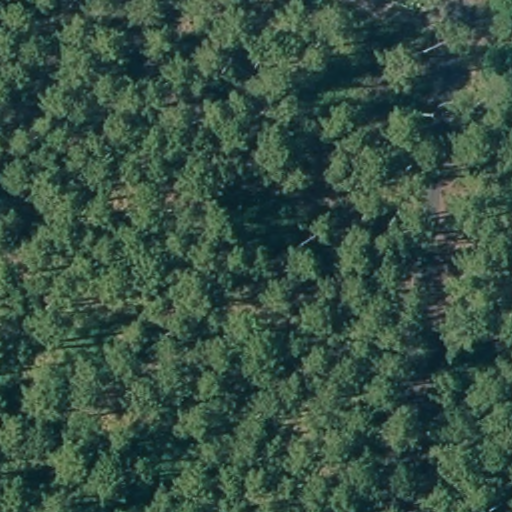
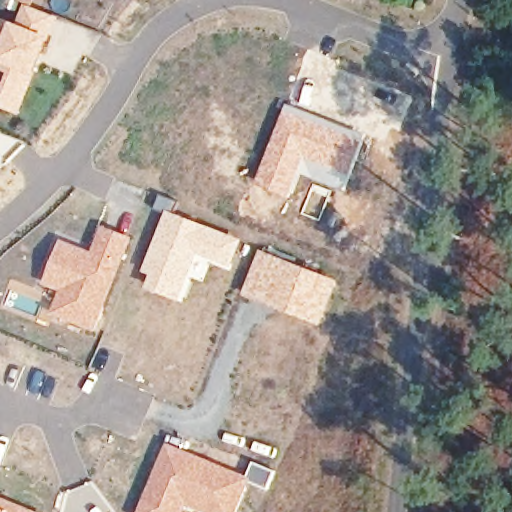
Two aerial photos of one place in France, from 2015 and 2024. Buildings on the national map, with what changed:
new [(31,7),(57,17),(50,37),(15,23),(23,3),(17,0),(34,0),(31,7)]
new [(15,23),(50,37),(19,115),(0,107),(0,17),(15,23)]
new [(298,173),(287,199),(252,183),(284,107),(365,136),(351,176),(345,192),(298,173)]
new [(164,211),(152,207),(157,193),(176,200),(171,213),(241,239),(230,270),(198,258),(180,302),(144,287),(148,276),(140,272),(164,211)]
new [(57,238),(89,250),(99,224),(132,237),(95,332),(49,317),(58,291),(40,284),(57,238)]
new [(257,248),(338,281),(321,326),(242,294),(257,248)]
new [(246,476),(252,461),(276,471),(267,491),(248,483),(236,512),(198,512),(185,507),(183,512),(137,512),(164,442),(246,476)]
new [(38,512),(0,512),(0,497),(38,512)]

